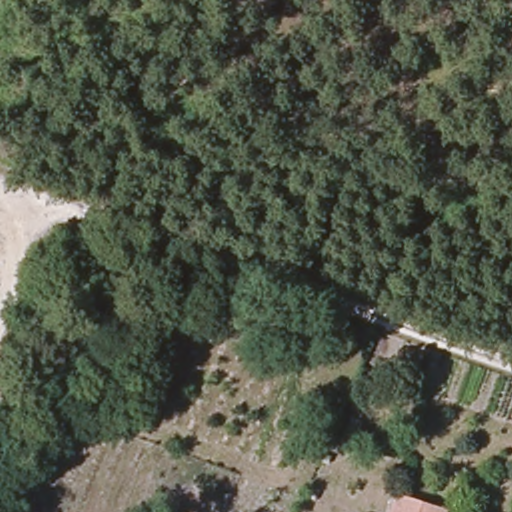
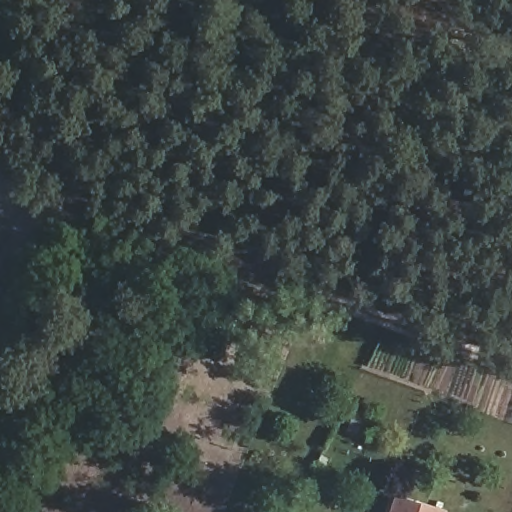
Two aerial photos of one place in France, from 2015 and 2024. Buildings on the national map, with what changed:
unchanged [(430,512),(391,512),(394,501),(430,512)]

